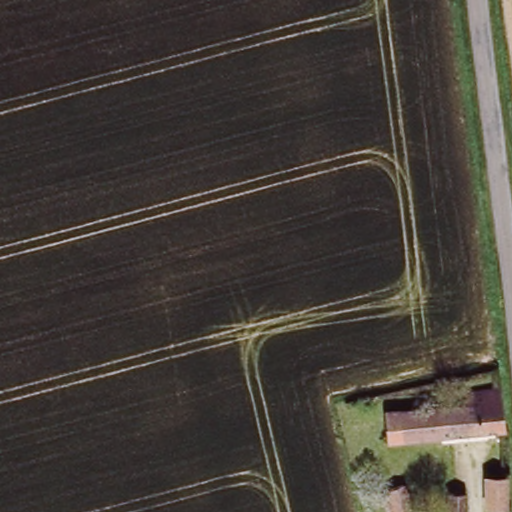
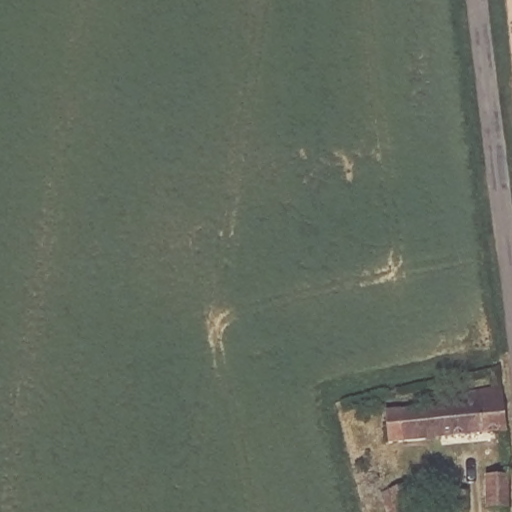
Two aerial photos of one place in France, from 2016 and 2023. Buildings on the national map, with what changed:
unchanged [(464,401),(464,389),(487,386),(495,386),(500,430),(385,443),(382,411),(464,401)]
unchanged [(412,508),(400,512),(388,512),(380,490),(403,482),(412,508)]
unchanged [(506,482),(507,511),(498,512),(487,512),(485,483),(506,482)]
unchanged [(471,512),(452,512),(450,487),(470,487),(471,512)]

